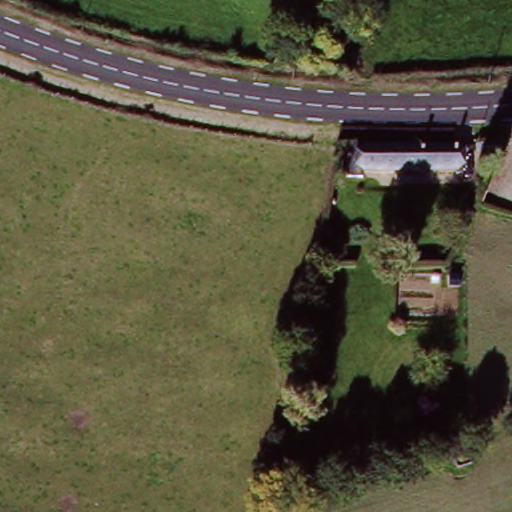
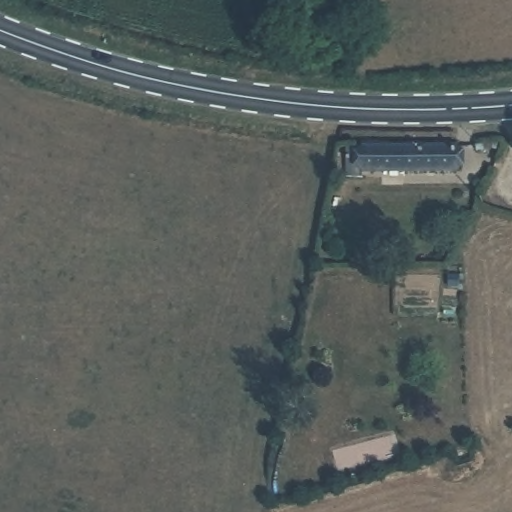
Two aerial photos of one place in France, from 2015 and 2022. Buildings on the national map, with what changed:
unchanged [(363,146),(462,146),(464,180),(362,177),(363,146)]

